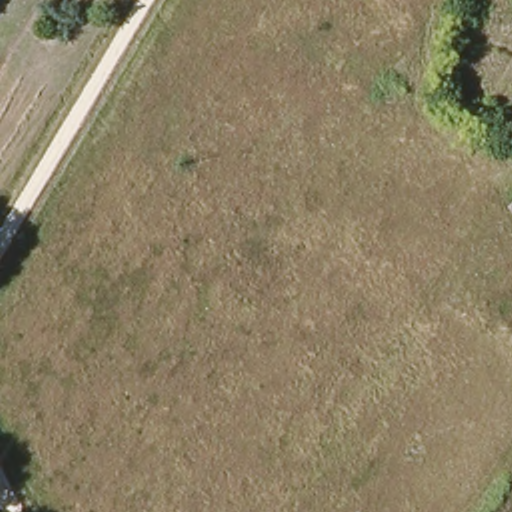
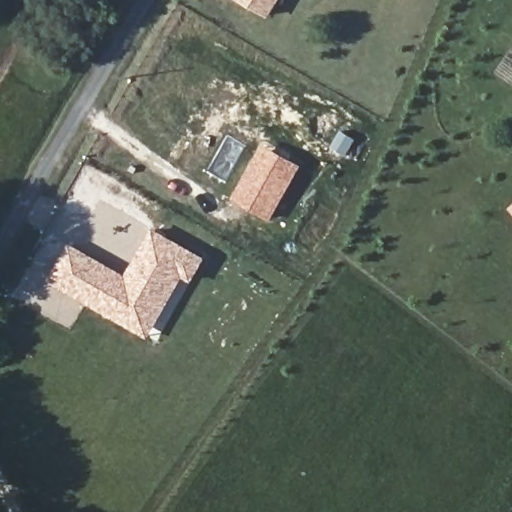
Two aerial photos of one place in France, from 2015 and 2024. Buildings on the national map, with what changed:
new [(270,18),(239,0),(280,0),(270,18)]
new [(300,166),(271,220),(231,201),(261,146),(300,166)]
new [(72,245),(126,273),(156,230),(205,257),(192,281),(185,278),(149,339),(52,284),(72,245)]

